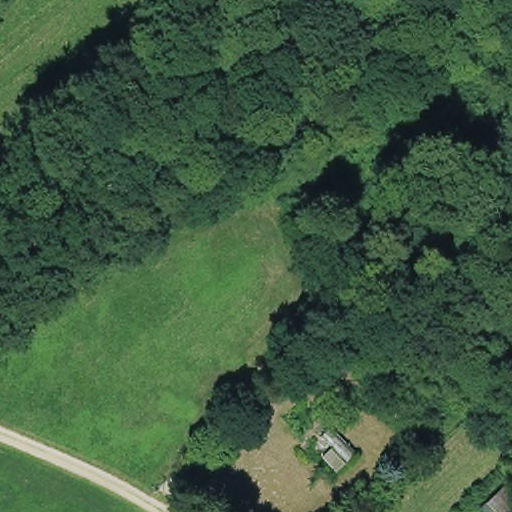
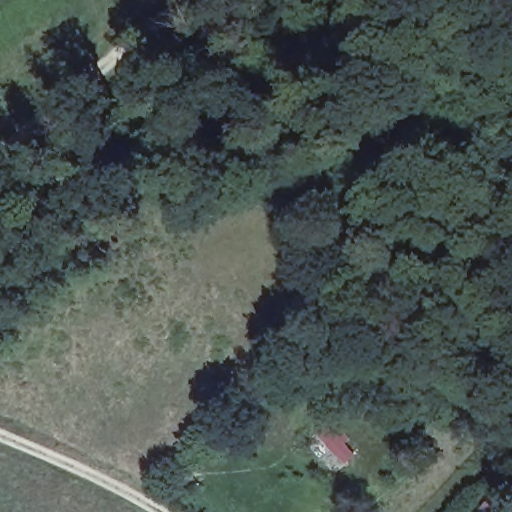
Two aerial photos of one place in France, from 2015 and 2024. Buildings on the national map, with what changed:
unchanged [(350,455),(332,474),(301,445),(325,427),(350,455)]
unchanged [(484,501),(503,482),(512,491),(512,512),(494,512),(484,501)]

